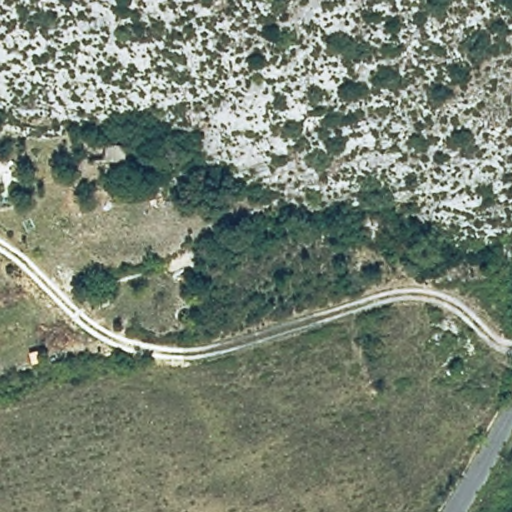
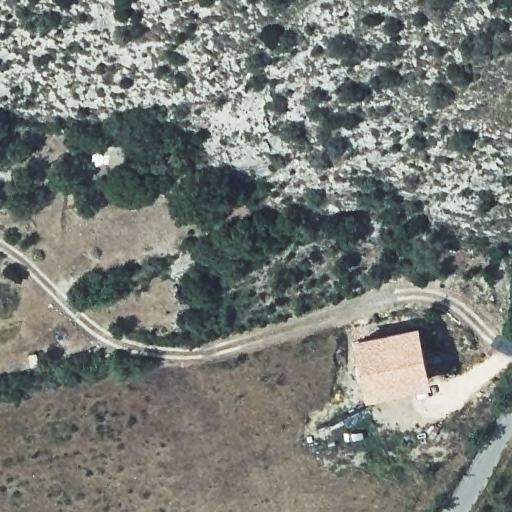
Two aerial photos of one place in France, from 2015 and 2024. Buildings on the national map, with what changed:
unchanged [(105,146),(127,146),(126,162),(104,161),(105,146)]
new [(420,323),(433,383),(368,397),(353,338),(420,323)]

